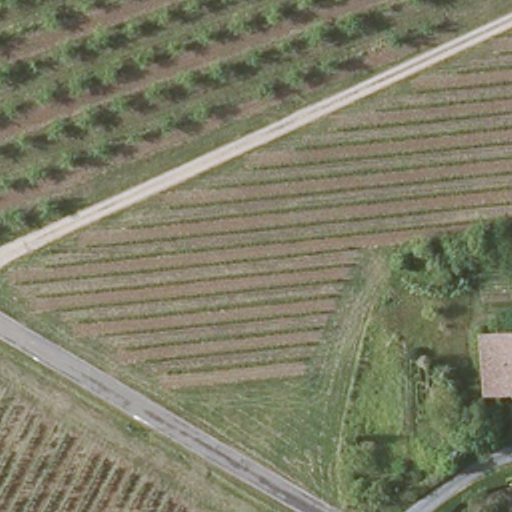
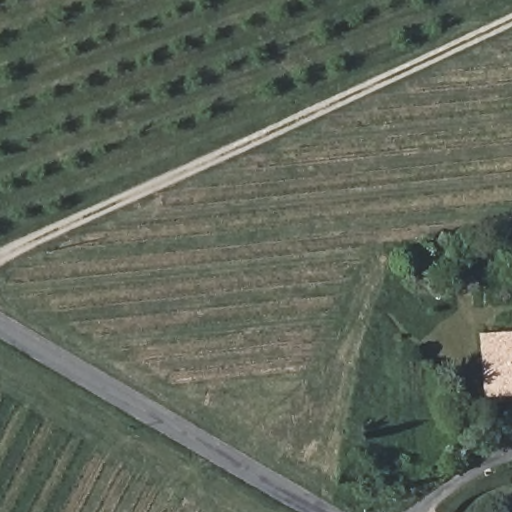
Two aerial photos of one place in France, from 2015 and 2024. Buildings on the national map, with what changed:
unchanged [(483,329),(512,329),(512,394),(485,395),(483,329)]

